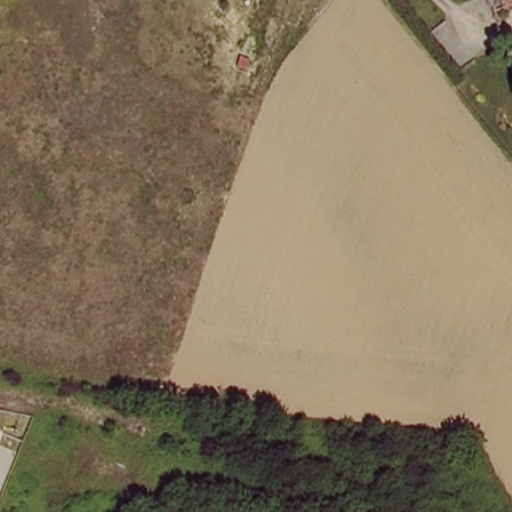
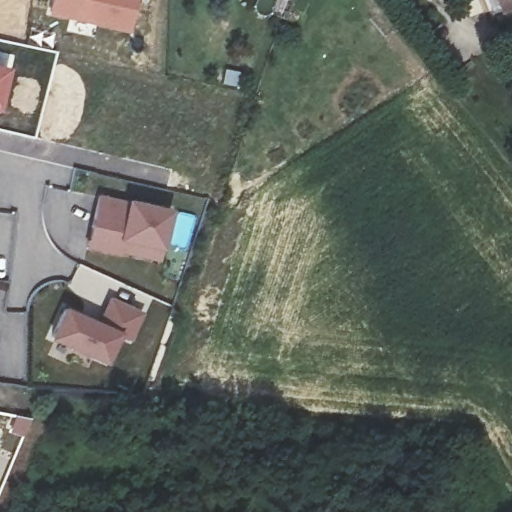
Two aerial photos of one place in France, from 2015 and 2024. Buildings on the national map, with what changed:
new [(128,29),(51,12),(54,0),(136,0),(128,29)]
unchanged [(488,0),(512,0),(512,6),(494,13),(488,0)]
new [(9,65),(0,106),(0,63),(9,65)]
new [(128,199),(175,210),(165,251),(125,240),(121,255),(86,247),(99,195),(128,199)]
new [(100,322),(111,298),(145,314),(132,342),(122,337),(110,368),(50,341),(65,306),(100,322)]

